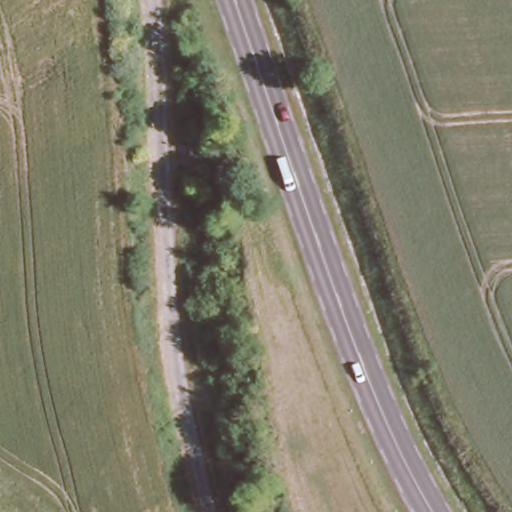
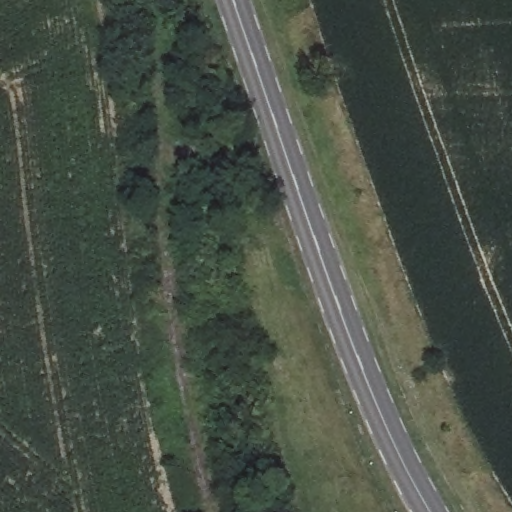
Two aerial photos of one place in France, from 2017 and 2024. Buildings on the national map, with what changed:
unchanged [(185,132),(207,132),(208,175),(185,173),(185,132)]

